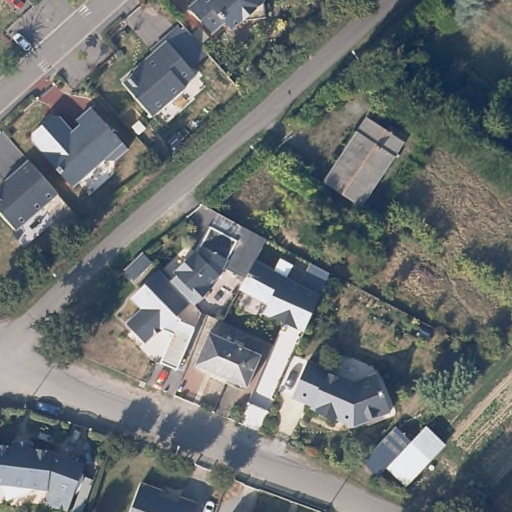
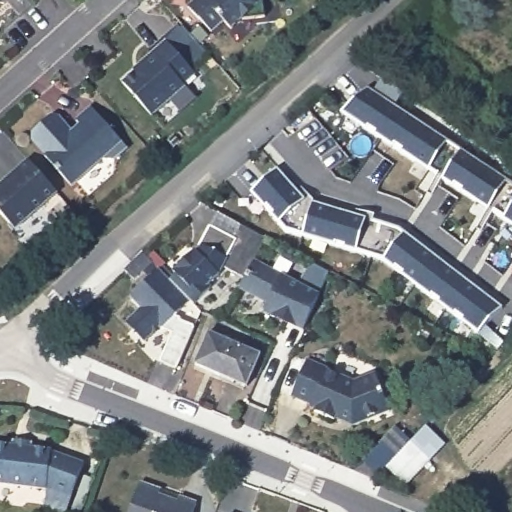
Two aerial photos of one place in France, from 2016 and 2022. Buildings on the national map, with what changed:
unchanged [(267,18),(244,21),(233,31),(226,22),(214,34),(202,21),(190,7),(200,0),(208,0),(210,2),(213,0),(265,0),(267,18)]
unchanged [(182,86),(184,88),(151,117),(150,117),(121,84),(141,67),(139,65),(152,53),(149,49),(175,26),(197,52),(184,64),(194,76),(182,86)]
demolished [(512,76),(512,77),(511,77),(512,76)]
new [(512,182),(512,225),(341,112),(368,88),(512,182)]
unchanged [(129,148),(115,160),(104,159),(73,186),(46,156),(47,155),(33,139),(34,132),(53,116),(60,116),(76,135),(85,128),(77,120),(92,107),(129,148)]
demolished [(400,143),(398,146),(356,209),(321,186),(365,120),(400,143)]
unchanged [(56,195),(15,232),(0,215),(0,187),(3,184),(5,186),(29,164),(56,195)]
new [(479,335),(385,258),(357,250),(305,235),(286,230),(252,192),(278,169),(305,199),(314,204),(365,217),(402,227),(504,307),(479,335)]
unchanged [(306,333),(265,313),(270,305),(239,290),(243,278),(222,272),(200,305),(192,303),(177,318),(195,326),(178,372),(160,363),(172,336),(163,330),(143,342),(125,322),(140,308),(131,298),(134,294),(155,274),(187,243),(195,251),(210,226),(232,236),(240,222),(265,237),(255,262),(300,282),(310,261),(331,272),(306,333)]
unchanged [(156,275),(134,294),(125,285),(147,265),(156,275)]
unchanged [(260,355),(246,387),(196,366),(211,334),(260,355)]
unchanged [(307,359),(328,367),(327,369),(355,380),(375,370),(392,407),(356,423),(352,415),(342,418),(336,416),(335,418),(315,410),(316,407),(311,405),(312,403),(292,395),(307,359)]
unchanged [(403,488),(382,476),(382,477),(367,462),(399,428),(414,442),(411,445),(432,465),(403,488)]
unchanged [(50,447),(84,451),(66,504),(44,502),(45,485),(0,480),(0,441),(11,442),(11,437),(30,438),(30,444),(50,446),(50,447)]
unchanged [(156,493),(176,500),(179,495),(195,501),(192,512),(128,512),(139,482),(157,488),(156,493)]

